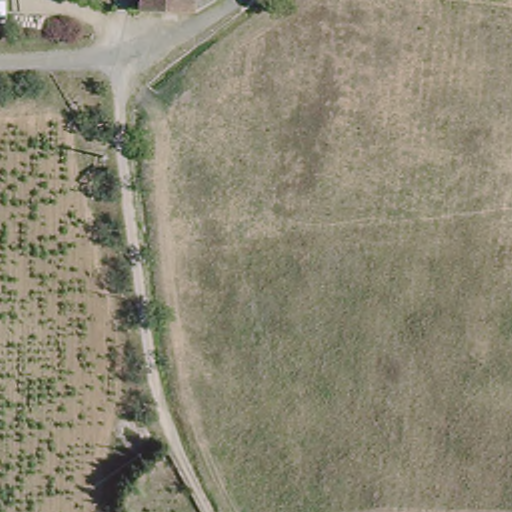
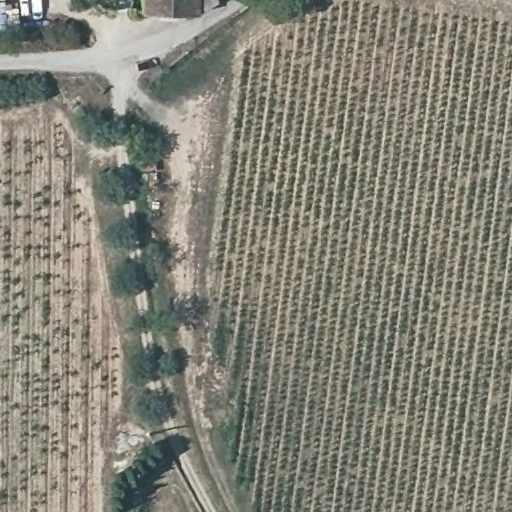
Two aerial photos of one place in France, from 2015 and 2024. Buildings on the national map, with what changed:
unchanged [(211,0),(211,4),(199,14),(140,13),(141,0),(211,0)]

